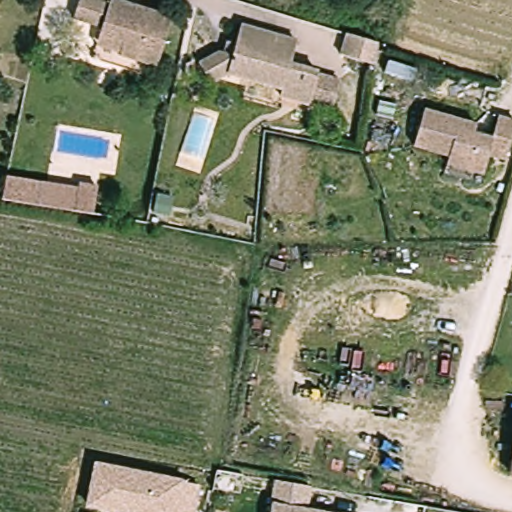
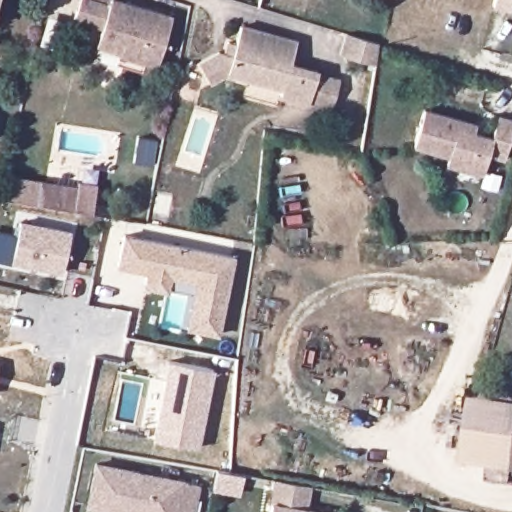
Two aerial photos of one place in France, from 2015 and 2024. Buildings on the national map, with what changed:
unchanged [(101,31),(103,24),(74,16),(79,0),(129,0),(173,13),(159,63),(146,60),(121,53),(122,50),(98,43),(101,31)]
new [(491,8),(492,0),(512,0),(509,11),(491,8)]
unchanged [(334,106),(309,99),(280,92),(282,85),(226,71),(209,82),(198,63),(218,50),(231,54),(238,23),(296,38),(289,61),(317,68),(342,74),(334,106)]
unchanged [(381,44),(376,66),(340,55),(346,34),(381,44)]
unchanged [(506,160),(489,155),(484,176),(448,165),(451,155),(412,144),(422,109),(475,125),(473,131),(493,138),(499,115),(512,119),(512,136),(506,160)]
unchanged [(76,179),(94,182),(90,210),(0,196),(0,186),(3,174),(75,185),(76,179)]
new [(71,230),(61,273),(10,263),(19,220),(71,230)]
new [(236,256),(220,336),(186,329),(195,284),(171,277),(168,292),(141,286),(146,271),(116,265),(123,233),(236,256)]
new [(213,368),(196,448),(151,440),(168,360),(213,368)]
new [(467,471),(474,414),(512,419),(512,478),(467,471)]
unchanged [(194,512),(106,512),(83,507),(93,462),(183,480),(199,487),(194,512)]
new [(213,490),(216,470),(243,475),(239,495),(213,490)]
unchanged [(308,488),(304,511),(307,512),(268,512),(273,482),(308,488)]

